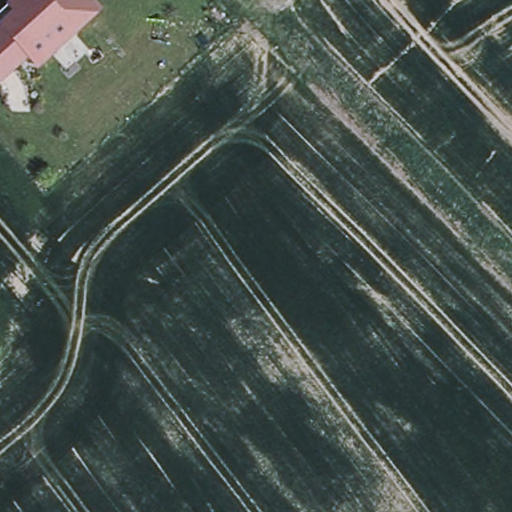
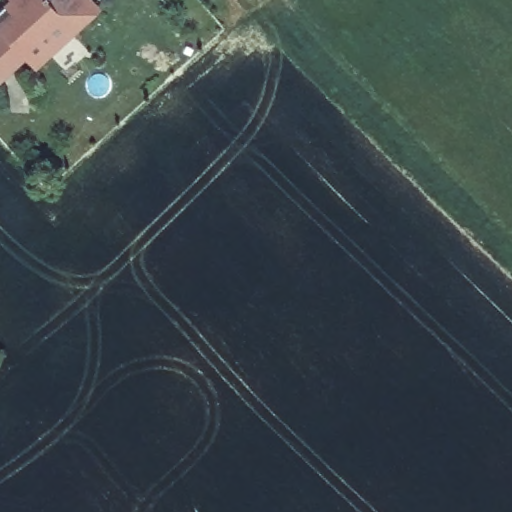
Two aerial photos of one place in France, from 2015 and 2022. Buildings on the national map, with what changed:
unchanged [(40,0),(44,4),(47,1),(49,4),(52,0),(70,0),(74,4),(77,0),(84,0),(98,15),(90,23),(37,72),(26,60),(0,85),(0,35),(2,34),(0,33),(0,18),(8,11),(14,6),(8,0),(40,0)]

